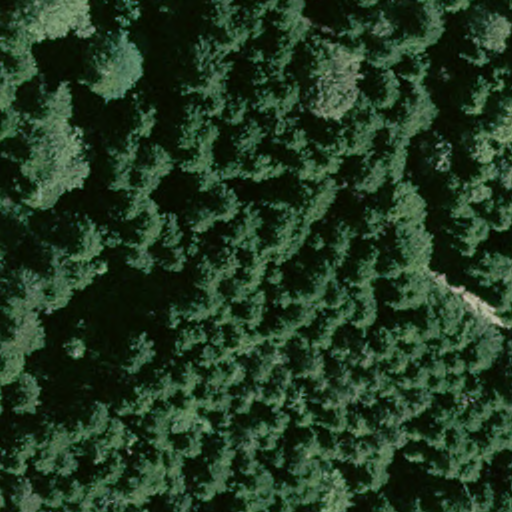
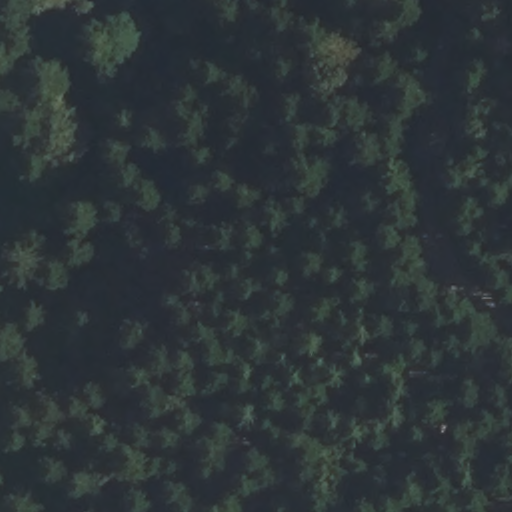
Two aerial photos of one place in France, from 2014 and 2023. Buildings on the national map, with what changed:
unchanged [(0,313),(0,312),(0,280),(4,277),(22,294),(0,313)]

